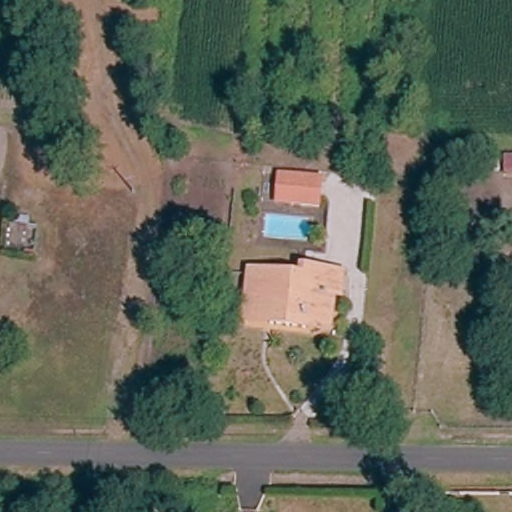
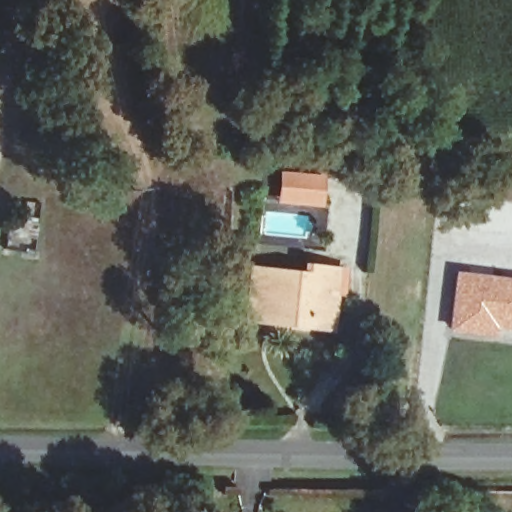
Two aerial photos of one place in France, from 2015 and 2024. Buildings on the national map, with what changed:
unchanged [(512,151),(512,186),(508,186),(512,151)]
unchanged [(313,209),(284,206),(272,205),(276,177),(288,178),(317,182),(313,209)]
unchanged [(308,325),(271,321),(247,320),(247,314),(251,271),(303,277),(307,269),(342,273),(341,294),(335,294),(332,315),(331,327),(308,325)]
new [(512,278),(512,333),(493,331),(492,338),(446,332),(453,271),(512,278)]

